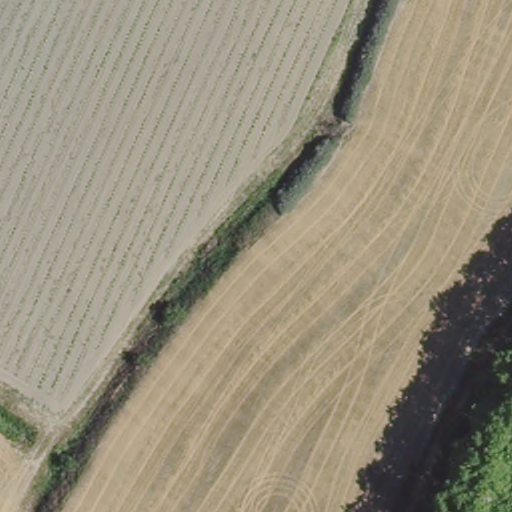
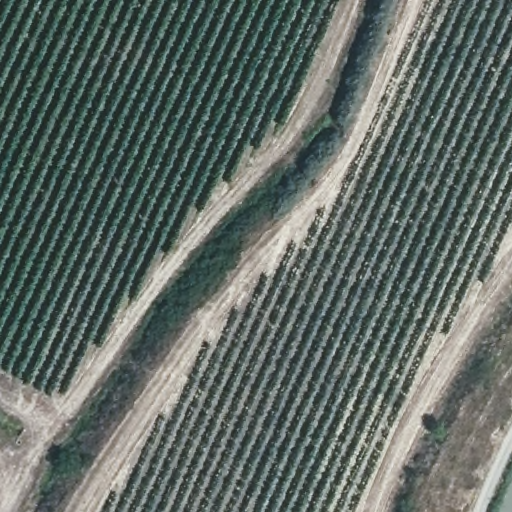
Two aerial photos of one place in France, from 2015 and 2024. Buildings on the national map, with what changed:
[]

